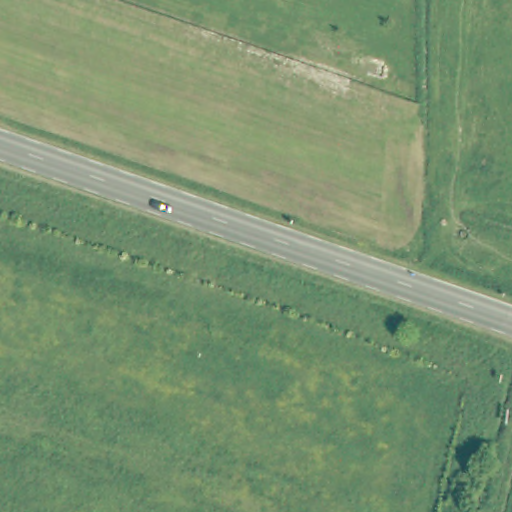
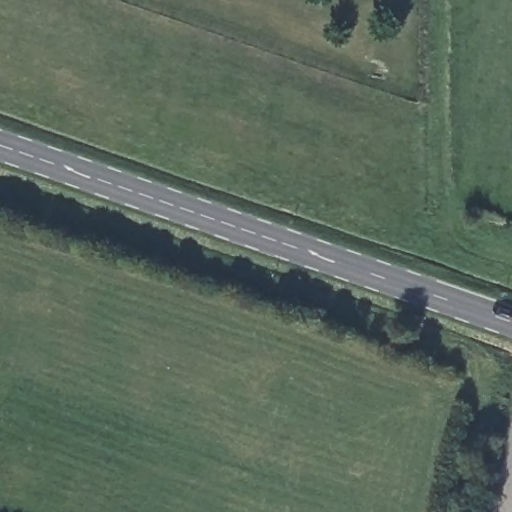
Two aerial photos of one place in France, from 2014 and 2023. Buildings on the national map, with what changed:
[]

